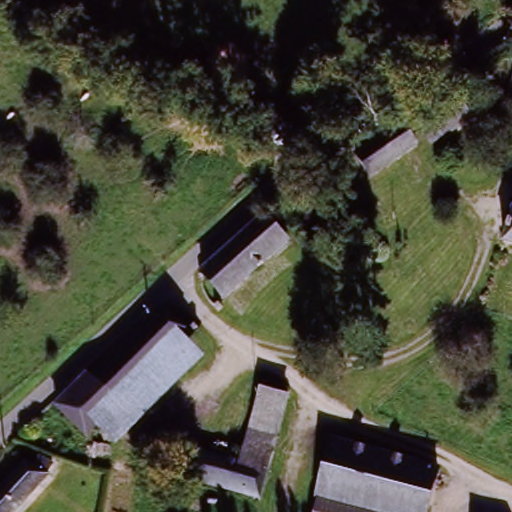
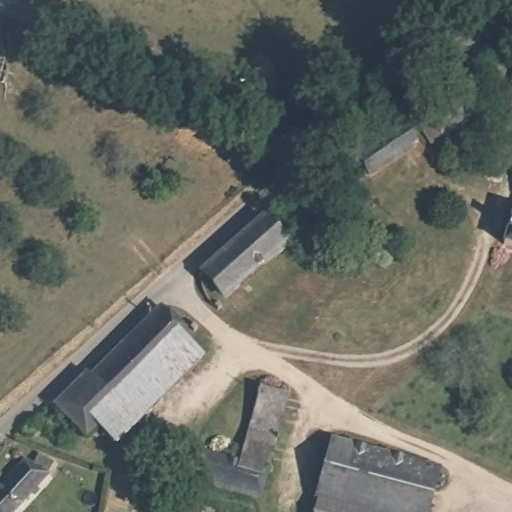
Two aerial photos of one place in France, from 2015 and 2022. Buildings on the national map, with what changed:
unchanged [(452,89),(467,110),(443,127),(428,106),(452,89)]
unchanged [(404,124),(416,142),(375,171),(362,154),(404,124)]
unchanged [(502,246),(512,215),(512,248),(502,246)]
unchanged [(210,267),(263,220),(288,247),(235,296),(210,267)]
unchanged [(77,437),(66,425),(54,412),(157,317),(180,341),(77,437)]
unchanged [(192,353),(90,448),(77,437),(180,341),(192,353)]
unchanged [(276,442),(245,433),(257,391),(288,400),(276,442)]
unchanged [(276,442),(260,503),(190,485),(198,452),(237,461),(245,433),(276,442)]
unchanged [(437,465),(424,512),(370,512),(315,497),(332,437),(437,465)]
unchanged [(21,512),(0,512),(0,489),(25,463),(47,485),(21,512)]
unchanged [(370,512),(311,512),(315,497),(370,512)]

